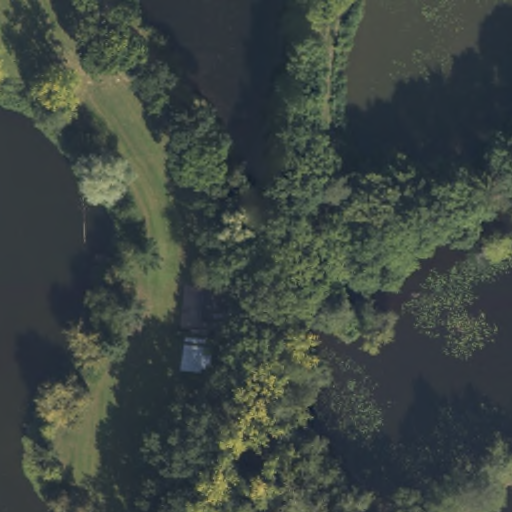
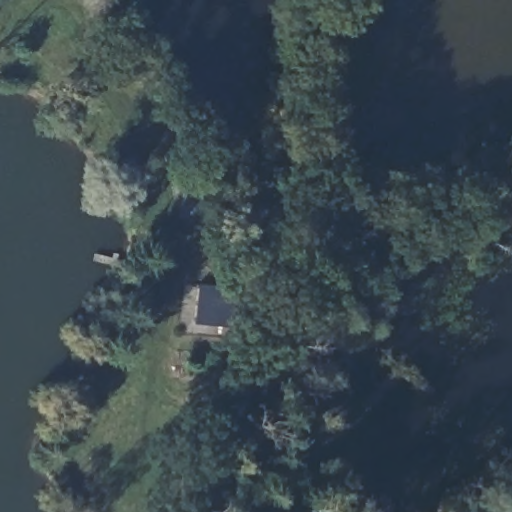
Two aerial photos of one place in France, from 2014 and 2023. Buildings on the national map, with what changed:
[]

